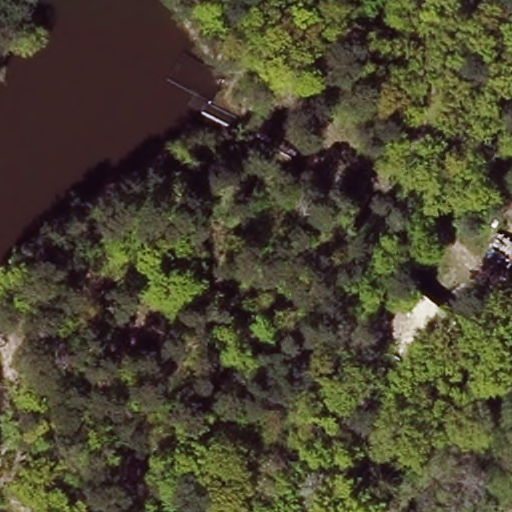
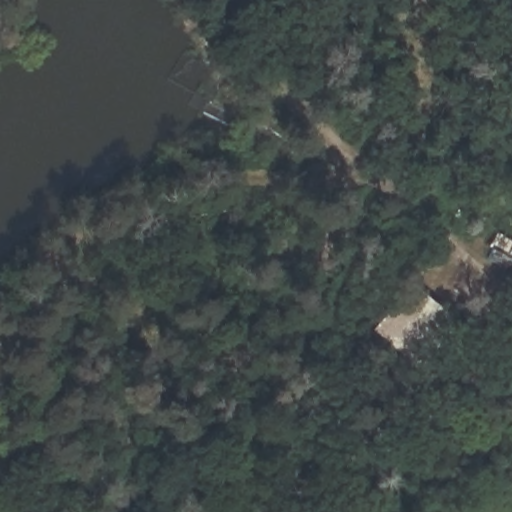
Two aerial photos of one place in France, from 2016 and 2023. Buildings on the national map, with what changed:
unchanged [(452,319),(409,360),(376,329),(419,288),(452,319)]

